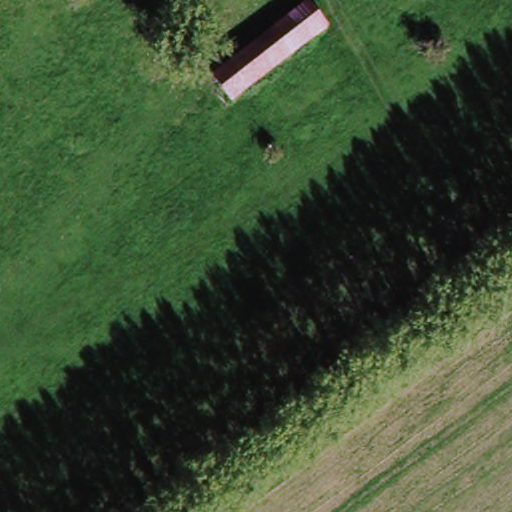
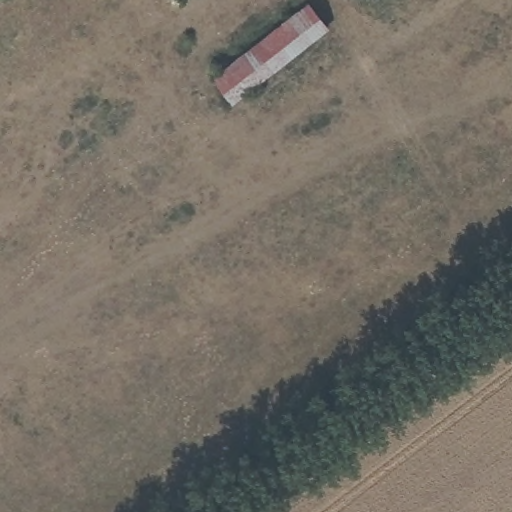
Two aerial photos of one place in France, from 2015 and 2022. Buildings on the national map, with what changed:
unchanged [(208,74),(308,3),(324,27),(231,101),(208,74)]

